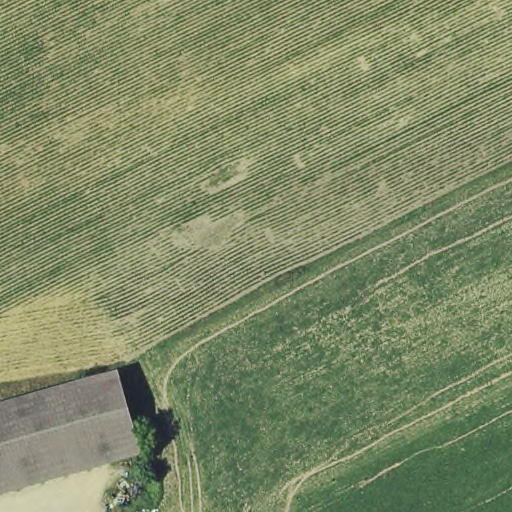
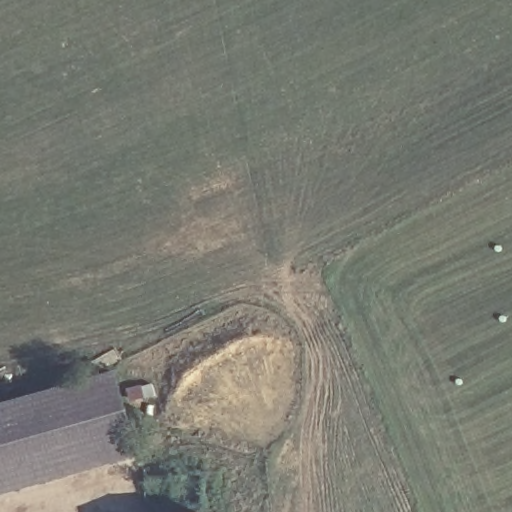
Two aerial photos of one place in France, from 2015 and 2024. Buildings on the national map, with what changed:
unchanged [(0,402),(123,367),(146,457),(0,500),(0,402)]

